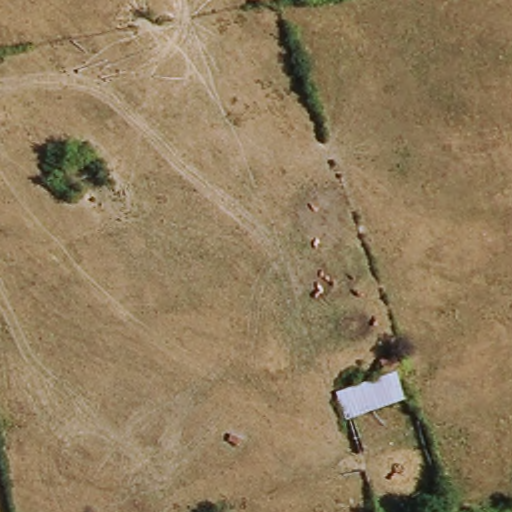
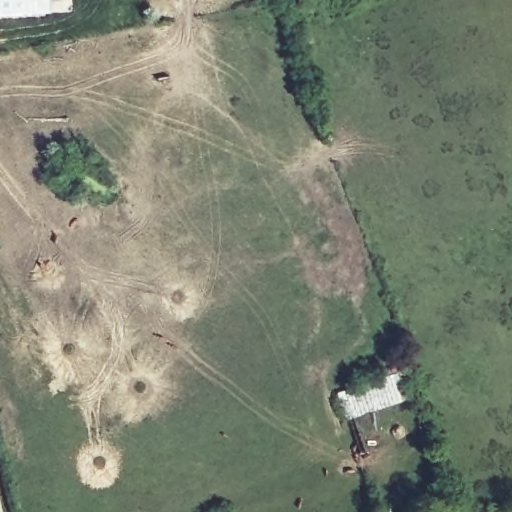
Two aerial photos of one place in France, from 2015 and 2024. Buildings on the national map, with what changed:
new [(71,11),(0,16),(0,0),(71,0),(71,11)]
unchanged [(352,420),(344,395),(402,377),(411,401),(352,420)]

